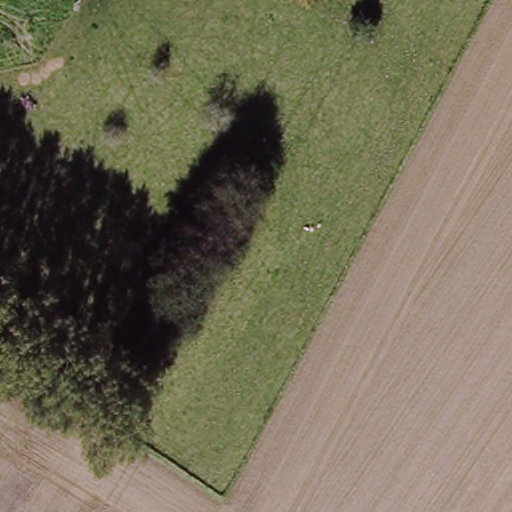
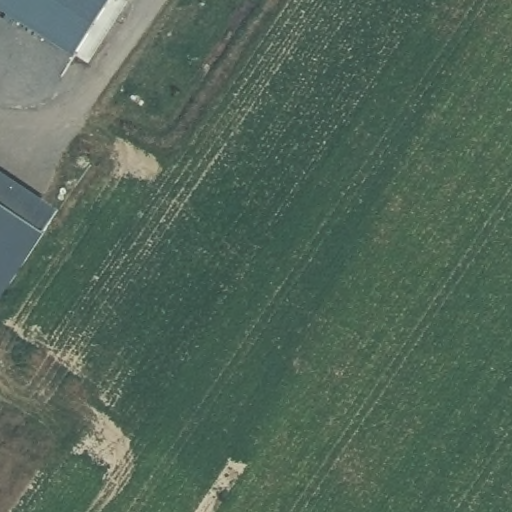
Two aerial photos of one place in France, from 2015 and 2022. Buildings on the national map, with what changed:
new [(74,56),(0,7),(0,0),(111,0),(74,56)]
new [(48,231),(0,303),(0,169),(60,210),(48,231)]

